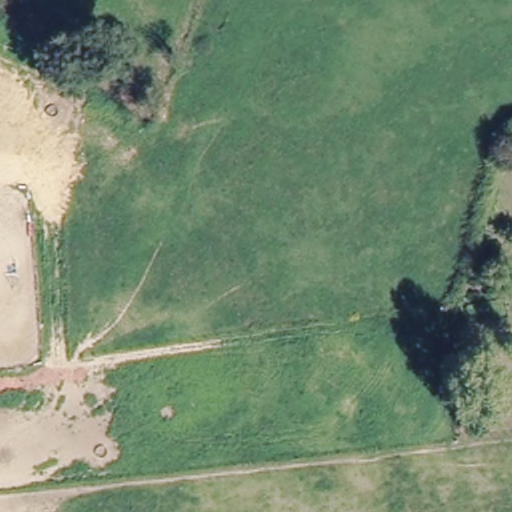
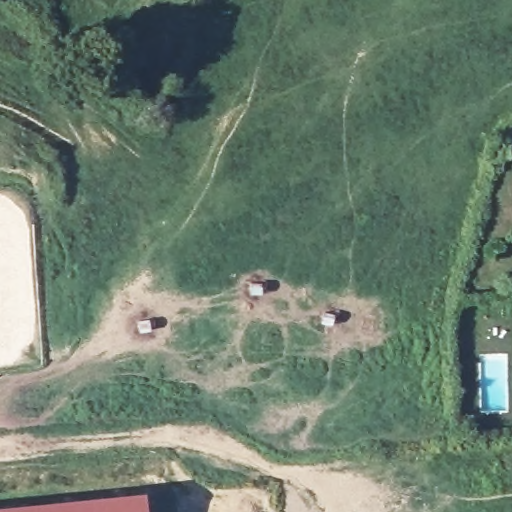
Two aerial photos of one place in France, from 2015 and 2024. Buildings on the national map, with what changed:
new [(147,512),(0,512),(0,505),(145,489),(147,512)]

